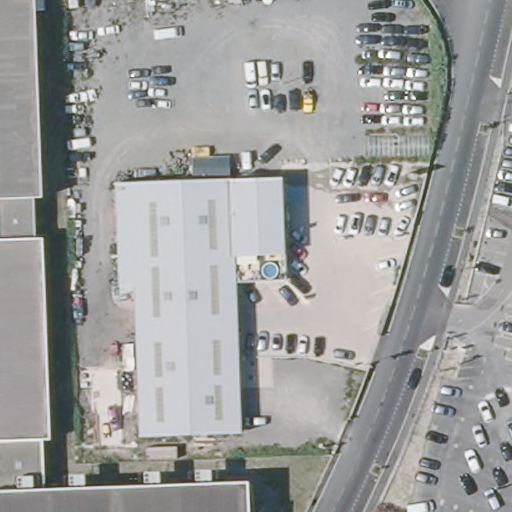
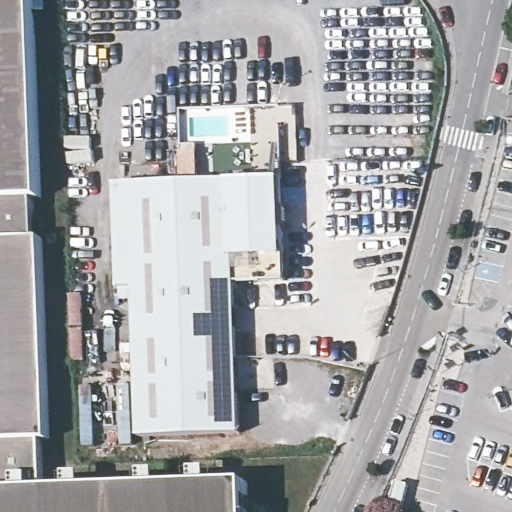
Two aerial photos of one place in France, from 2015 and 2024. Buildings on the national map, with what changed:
unchanged [(36,245),(46,245),(53,438),(47,438),(50,488),(252,480),(254,512),(0,512),(0,0),(44,0),(44,17),(36,17),(44,205),(35,205),(36,245)]
unchanged [(279,182),(283,282),(231,283),(236,433),(139,439),(133,297),(118,297),(114,187),(279,182)]

